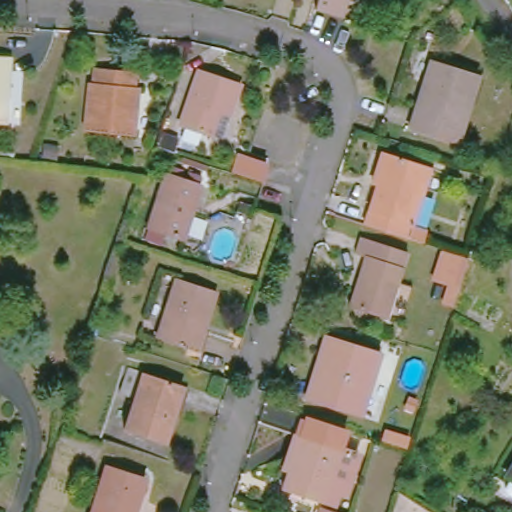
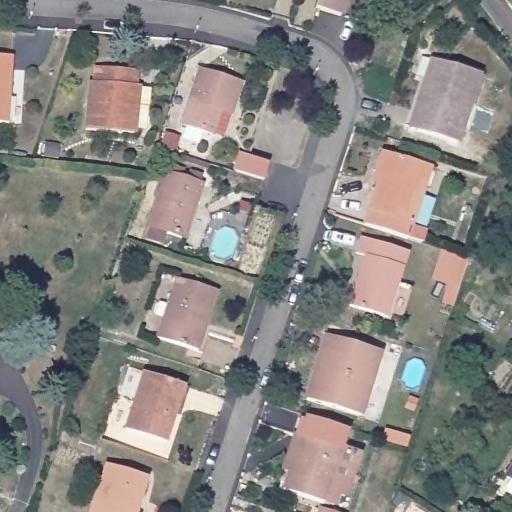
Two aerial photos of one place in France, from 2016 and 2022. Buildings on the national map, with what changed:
unchanged [(0,127),(0,56),(17,56),(16,127),(0,127)]
unchanged [(418,129),(439,58),(484,71),(464,143),(418,129)]
unchanged [(94,127),(97,84),(102,84),(104,70),(138,74),(138,88),(144,88),(142,131),(94,127)]
unchanged [(188,128),(206,74),(245,89),(237,120),(227,117),(218,140),(188,128)]
unchanged [(375,227),(389,174),(383,173),(388,152),(437,169),(415,239),(375,227)]
unchanged [(231,193),(235,177),(238,162),(270,170),(265,186),(259,201),(231,193)]
unchanged [(152,230),(168,177),(203,188),(188,242),(152,230)]
unchanged [(402,329),(390,325),(350,312),(365,263),(354,260),(360,242),(409,260),(400,290),(413,294),(402,329)]
unchanged [(453,306),(442,303),(447,284),(431,280),(440,251),(469,259),(453,306)]
unchanged [(158,338),(178,281),(218,296),(198,351),(158,338)]
unchanged [(317,399),(323,382),(327,384),(336,353),(332,351),(336,338),(384,354),(366,415),(317,399)]
unchanged [(126,433),(146,374),(184,389),(165,445),(126,433)]
unchanged [(295,492),(303,467),(300,466),(309,436),(354,452),(336,506),(295,492)]
unchanged [(114,469),(155,482),(145,512),(100,512),(114,469)]
unchanged [(512,472),(512,486),(506,482),(512,472)]

